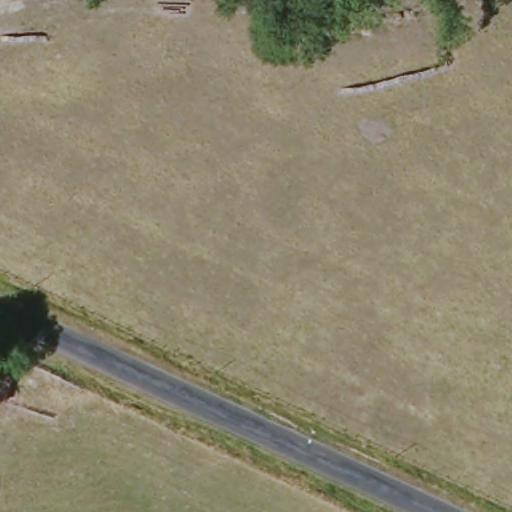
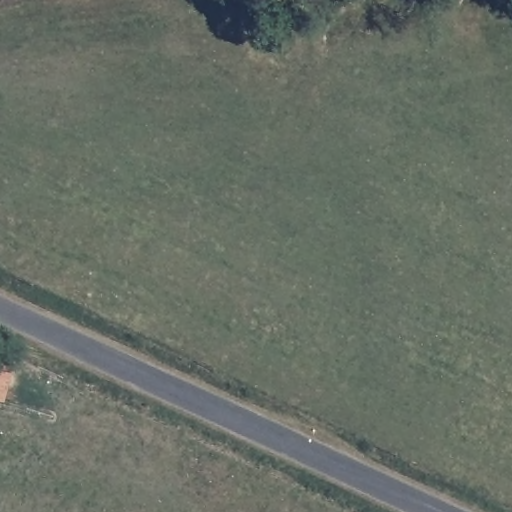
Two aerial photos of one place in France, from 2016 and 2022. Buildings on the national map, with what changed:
unchanged [(12,375),(3,402),(0,401),(0,372),(12,375)]

